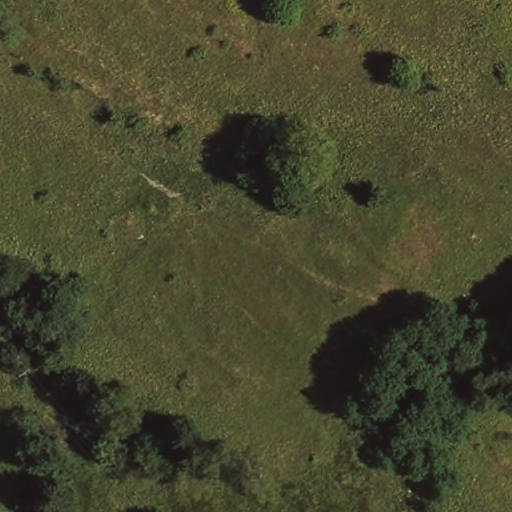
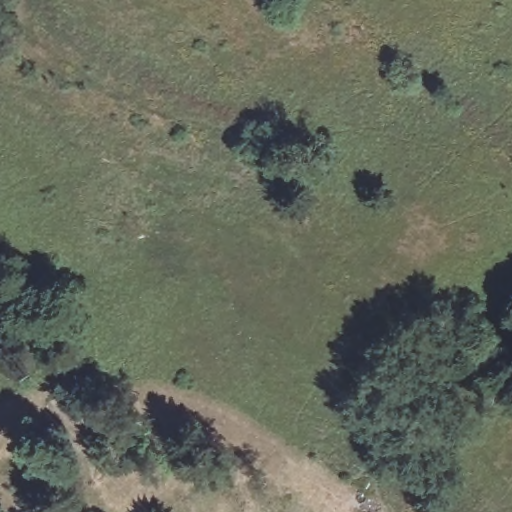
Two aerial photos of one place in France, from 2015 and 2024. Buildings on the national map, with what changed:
[]

